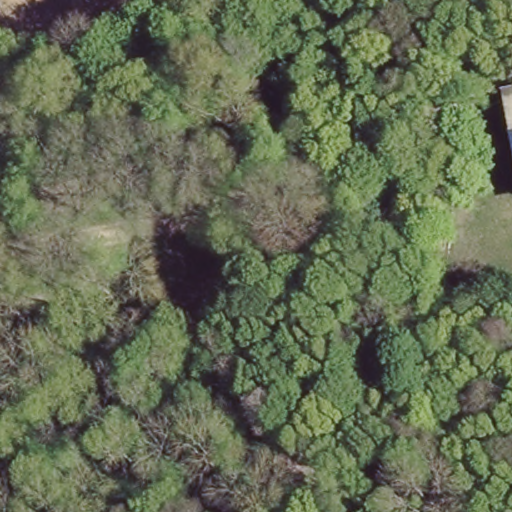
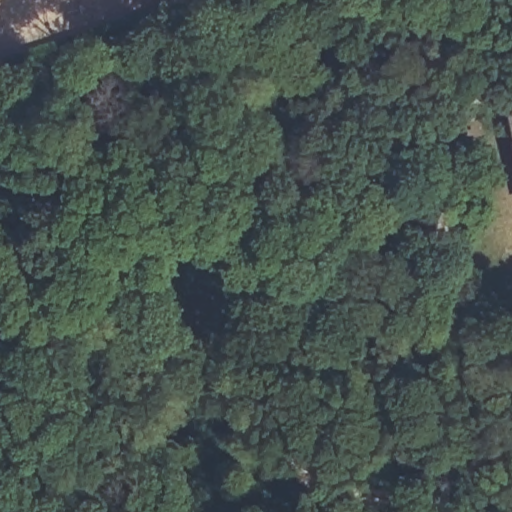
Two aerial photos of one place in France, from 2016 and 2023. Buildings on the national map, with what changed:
unchanged [(496,78),(512,75),(512,144),(496,78)]

